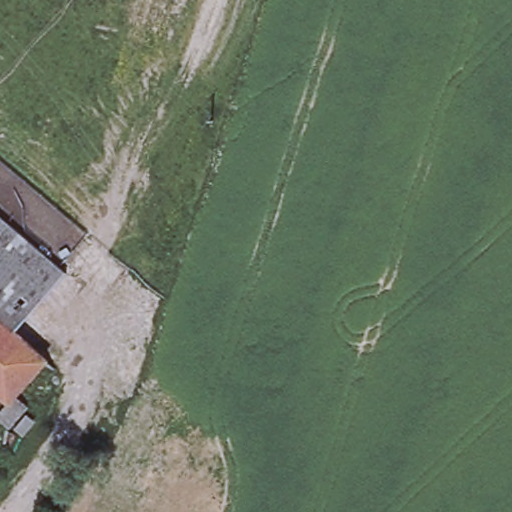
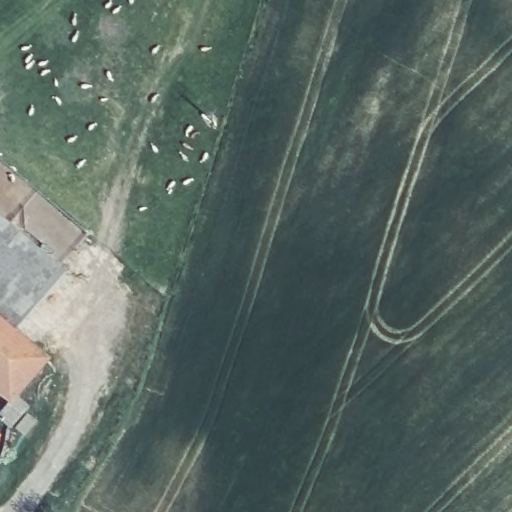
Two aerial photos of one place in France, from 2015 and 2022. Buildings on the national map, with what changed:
unchanged [(66,275),(12,334),(0,325),(0,219),(66,275)]
unchanged [(0,429),(0,325),(12,334),(55,371),(55,374),(40,365),(7,402),(7,430),(0,429)]

